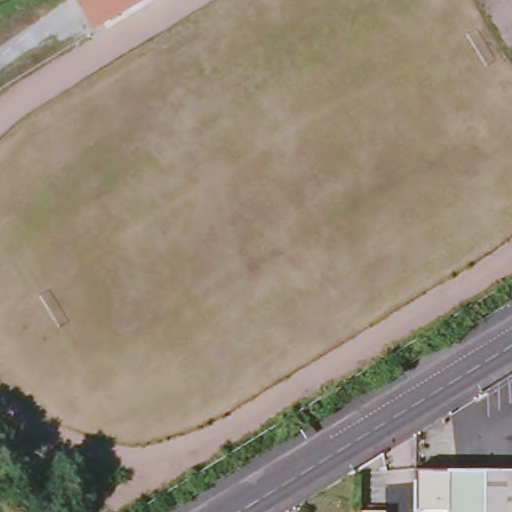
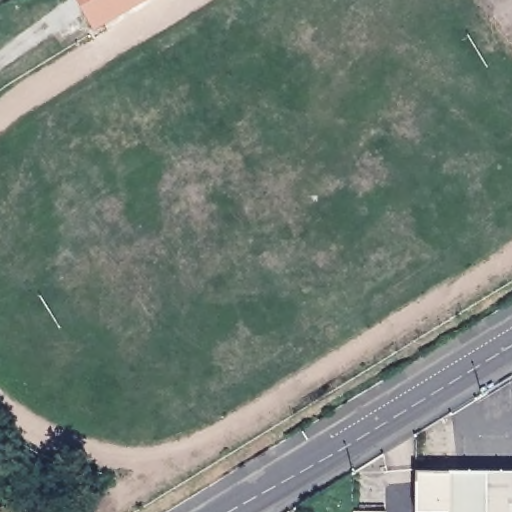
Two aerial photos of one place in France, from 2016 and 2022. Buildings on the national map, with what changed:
unchanged [(77,0),(146,0),(96,29),(77,0)]
unchanged [(416,512),(416,470),(451,470),(512,470),(512,512),(451,512),(416,512)]

